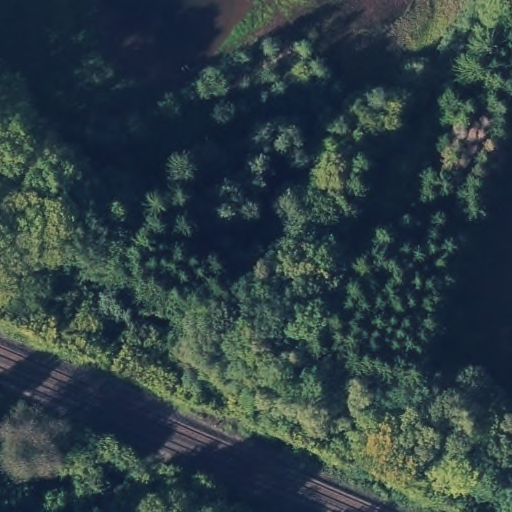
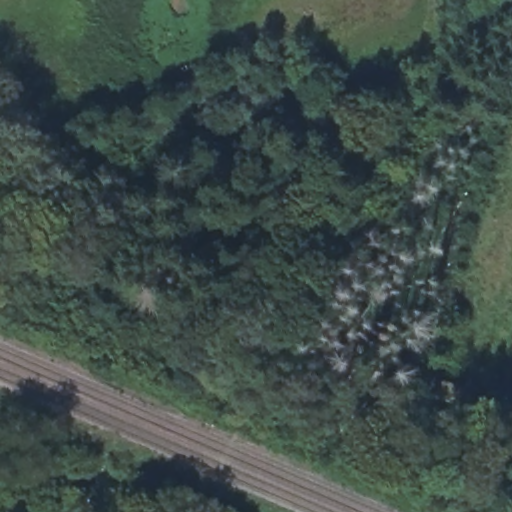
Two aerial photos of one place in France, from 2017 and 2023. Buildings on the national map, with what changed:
unchanged [(171,275),(154,273),(153,248),(171,247),(171,275)]

